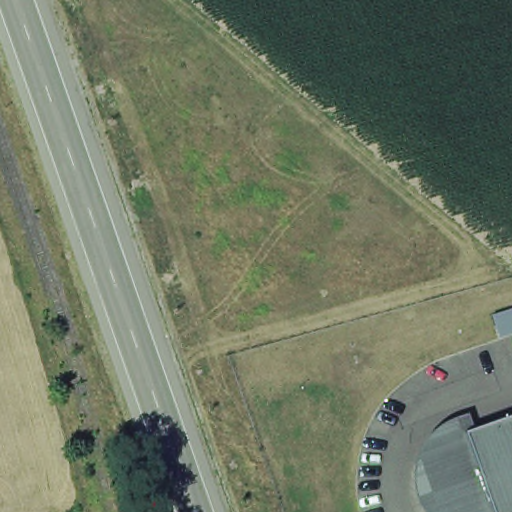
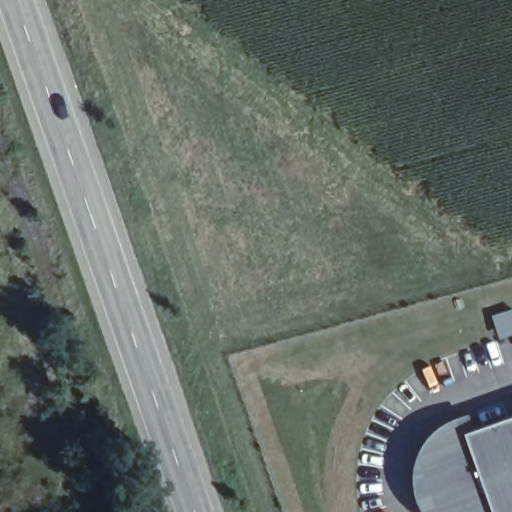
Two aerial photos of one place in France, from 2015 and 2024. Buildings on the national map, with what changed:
unchanged [(421,512),(414,496),(412,478),(415,456),(424,438),(439,424),(454,416),(466,411),(474,428),(512,414),(512,512),(421,512)]

